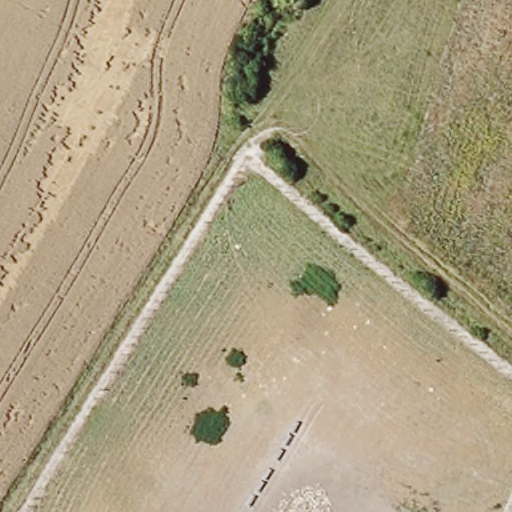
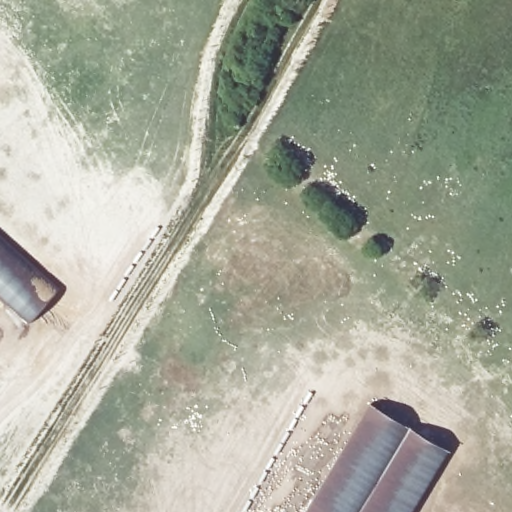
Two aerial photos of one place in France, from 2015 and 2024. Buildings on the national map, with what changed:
new [(31,322),(0,295),(0,234),(61,288),(31,322)]
new [(451,448),(413,512),(304,512),(371,402),(451,448)]

